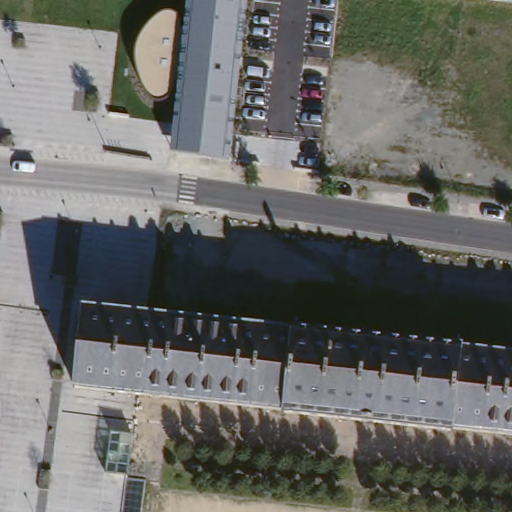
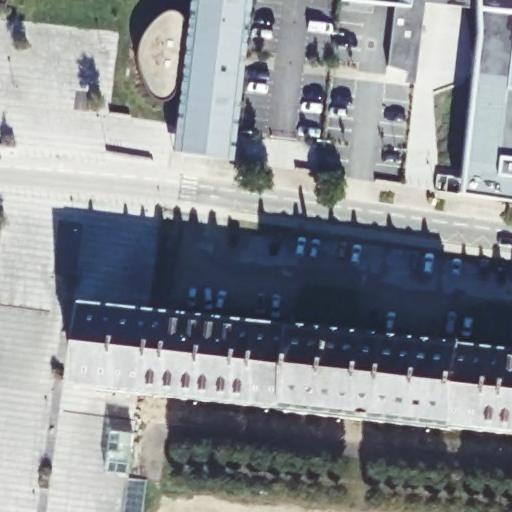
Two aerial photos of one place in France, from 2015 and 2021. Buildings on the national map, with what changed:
unchanged [(230,160),(171,151),(179,83),(169,96),(161,101),(154,101),(148,95),(141,81),(138,70),(135,55),(137,41),(145,29),(156,18),(165,12),(174,12),(180,17),(184,26),(188,0),(248,0),(230,160)]
new [(476,35),(474,9),(422,2),(413,84),(402,81),(404,71),(385,65),(392,6),(344,0),(512,0),(512,201),(459,193),(476,35)]
unchanged [(439,437),(276,418),(278,410),(74,386),(83,311),(285,333),(286,326),(449,345),(449,352),(512,359),(512,436),(439,428),(439,437)]
new [(107,432),(117,433),(129,435),(124,475),(102,473),(105,452),(107,432)]

